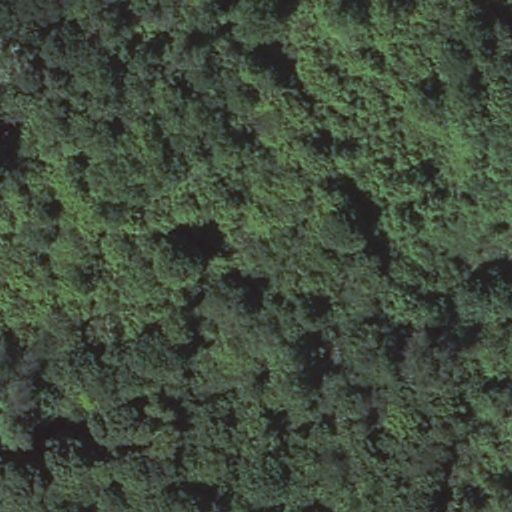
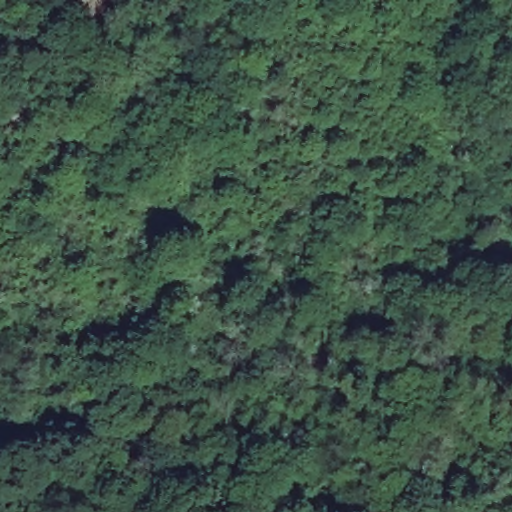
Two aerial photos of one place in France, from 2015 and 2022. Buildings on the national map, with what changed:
unchanged [(492,135),(467,108),(484,93),(508,120),(492,135)]

